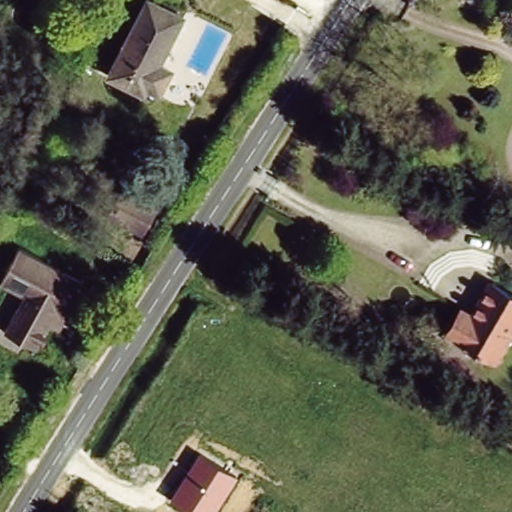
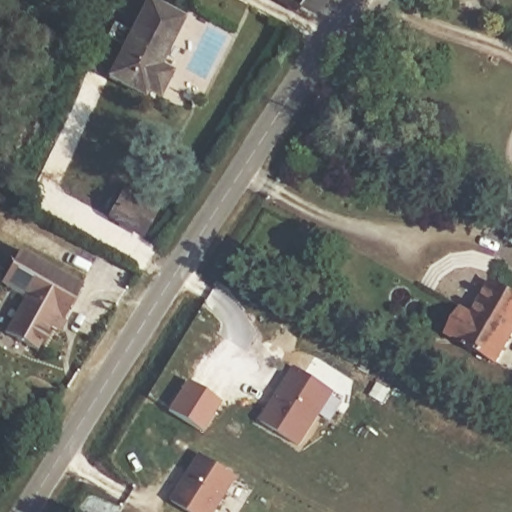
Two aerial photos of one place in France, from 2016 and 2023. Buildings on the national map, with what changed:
unchanged [(149,0),(157,0),(185,15),(161,59),(176,66),(172,73),(123,47),(149,0)]
unchanged [(172,73),(164,88),(150,81),(146,87),(112,69),(123,47),(172,73)]
unchanged [(104,225),(110,214),(124,187),(159,205),(144,232),(136,227),(129,239),(104,225)]
unchanged [(49,327),(38,349),(3,331),(20,299),(3,291),(1,282),(17,252),(81,286),(64,318),(58,331),(49,327)]
unchanged [(512,295),(512,331),(494,362),(450,336),(446,333),(461,307),(465,311),(472,314),(491,282),(512,295)]
new [(334,396),(344,402),(333,421),(321,415),(302,447),(261,422),(295,366),(336,392),(334,396)]
new [(204,432),(169,412),(188,380),(222,402),(204,432)]
unchanged [(198,452),(238,478),(215,512),(188,512),(168,500),(198,452)]

